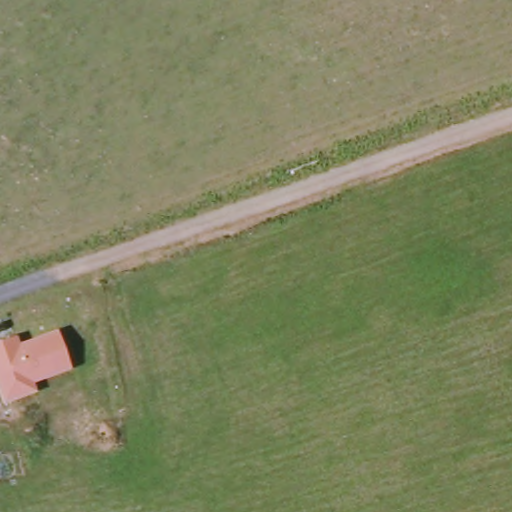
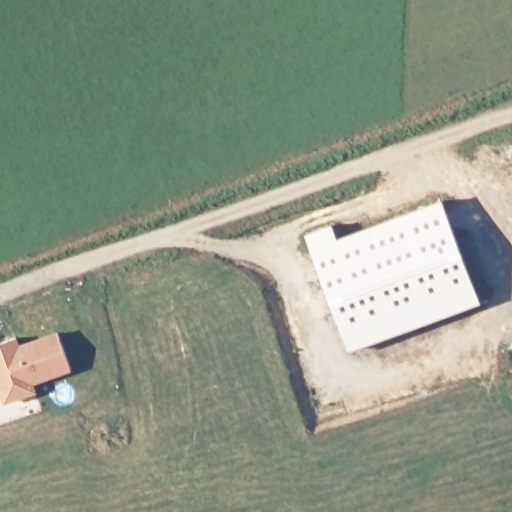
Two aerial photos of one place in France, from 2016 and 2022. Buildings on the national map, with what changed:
new [(349,352),(304,235),(332,224),(337,240),(442,200),(481,302),(349,352)]
unchanged [(2,403),(0,397),(0,342),(17,335),(20,344),(57,330),(70,370),(34,383),(37,392),(2,403)]

